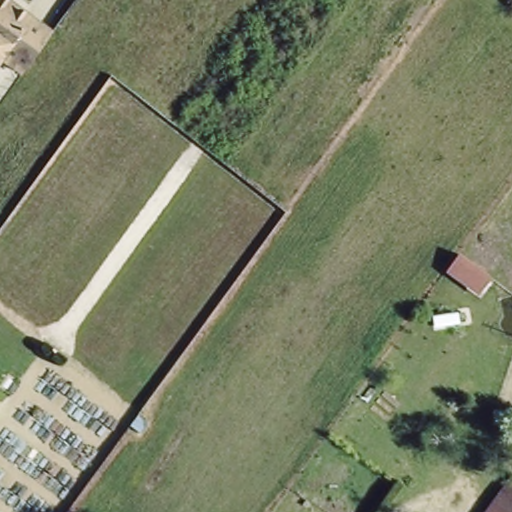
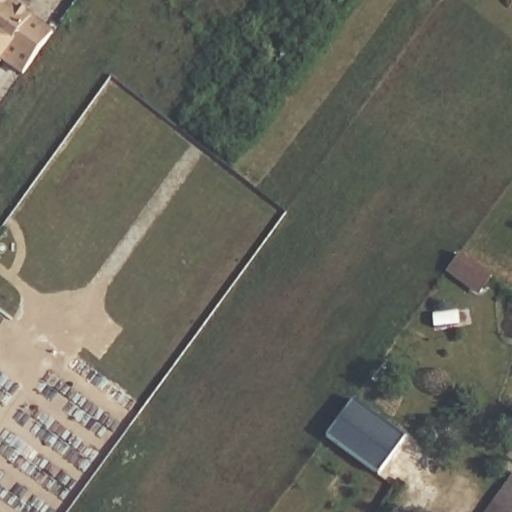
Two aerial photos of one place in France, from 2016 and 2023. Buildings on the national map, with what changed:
unchanged [(23,70),(3,55),(0,60),(0,0),(12,0),(53,28),(23,70)]
new [(459,256),(495,280),(485,295),(449,271),(459,256)]
new [(327,436),(354,400),(405,438),(380,474),(327,436)]
unchanged [(512,473),(512,512),(480,512),(510,471),(512,473)]

